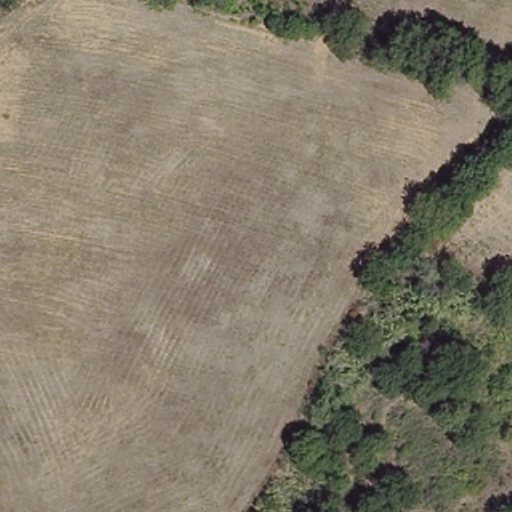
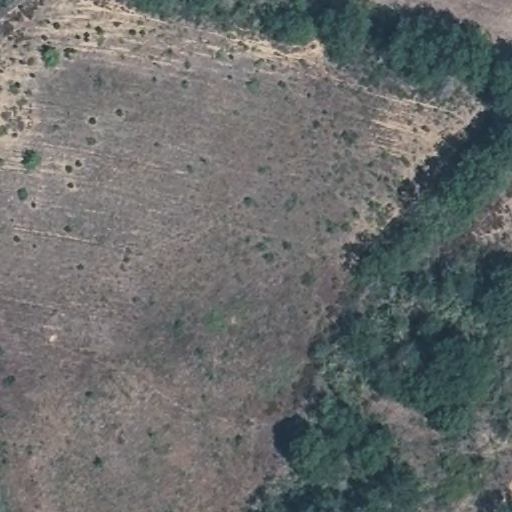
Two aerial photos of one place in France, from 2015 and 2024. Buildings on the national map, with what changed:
[]

